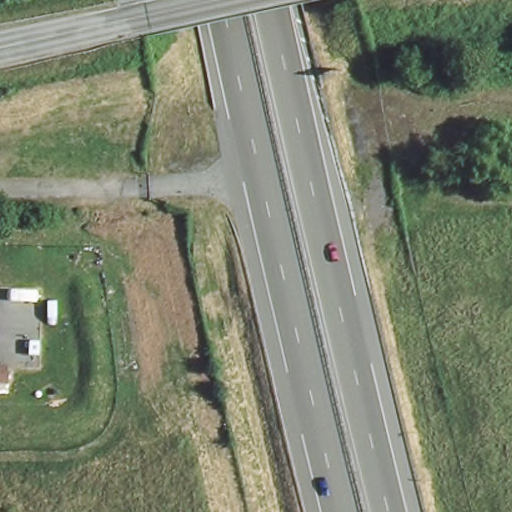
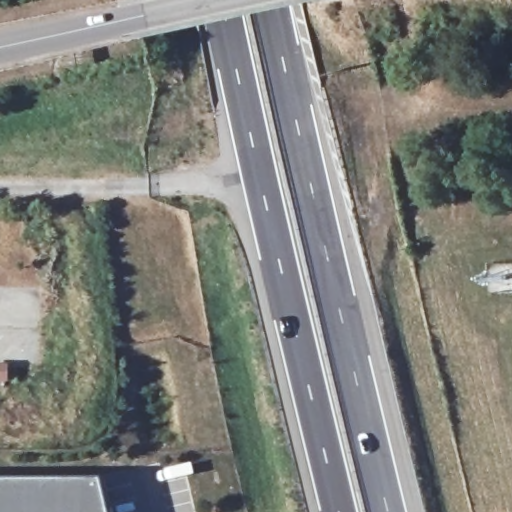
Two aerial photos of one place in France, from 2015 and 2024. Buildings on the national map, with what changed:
new [(97,481),(104,512),(0,512),(0,482),(97,481)]

